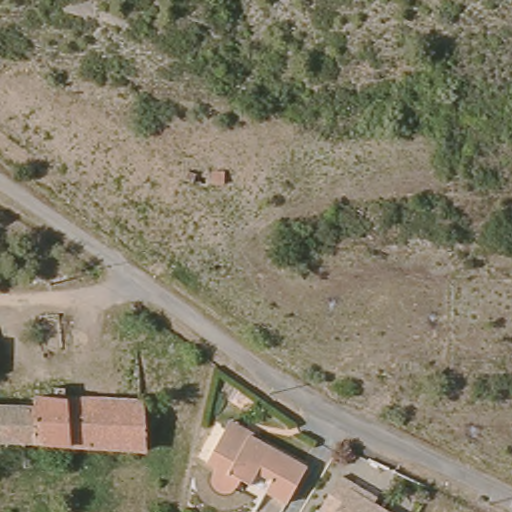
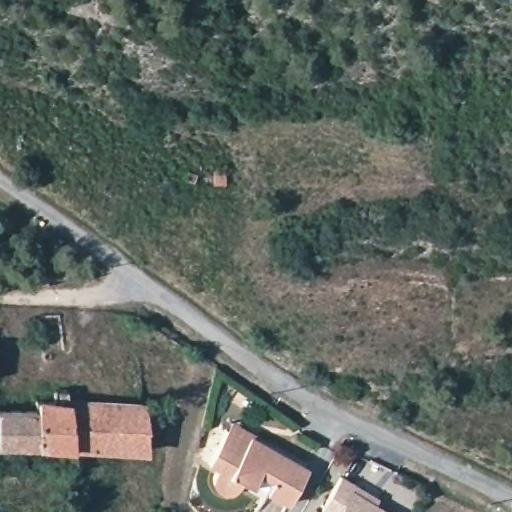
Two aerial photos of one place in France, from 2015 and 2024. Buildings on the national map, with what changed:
unchanged [(0,442),(0,408),(33,409),(33,397),(50,398),(50,386),(68,386),(67,396),(144,398),(144,447),(67,444),(0,442)]
unchanged [(213,460),(203,452),(222,422),(229,412),(248,423),(246,430),(305,465),(283,504),(261,490),(241,478),(213,460)]
unchanged [(369,503),(366,508),(372,512),(314,512),(332,482),(346,489),(369,503)]

